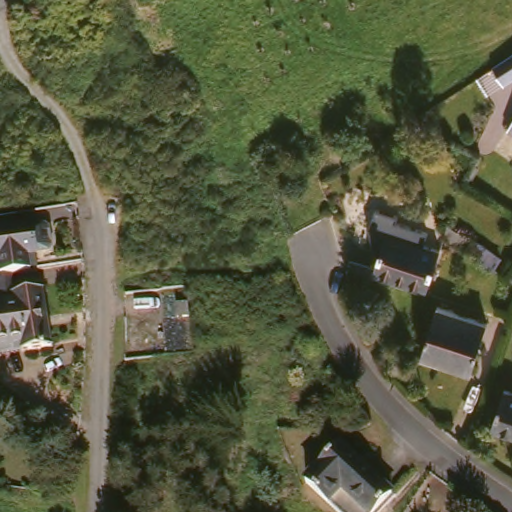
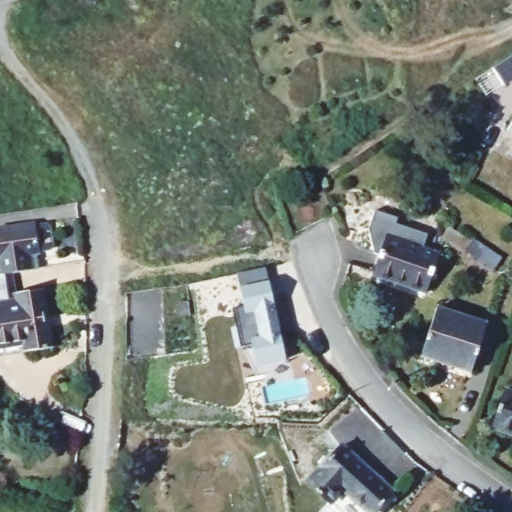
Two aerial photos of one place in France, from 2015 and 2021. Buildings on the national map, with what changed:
new [(512,51),(512,74),(496,85),(485,68),(512,51)]
unchanged [(0,226),(38,221),(39,223),(45,222),(45,220),(51,219),(57,226),(59,239),(54,245),(40,247),(43,266),(31,268),(19,270),(3,272),(0,251),(0,226)]
unchanged [(481,240),(475,250),(449,235),(455,225),(481,240)]
unchanged [(445,251),(432,291),(378,273),(390,233),(445,251)]
new [(245,307),(238,275),(267,268),(289,359),(280,361),(283,372),(262,376),(255,346),(243,348),(234,310),(245,307)]
unchanged [(0,273),(3,272),(19,270),(22,289),(51,286),(60,346),(31,351),(1,355),(0,346),(0,273)]
unchanged [(178,292),(180,307),(170,308),(168,294),(178,292)]
unchanged [(432,333),(443,300),(484,313),(491,316),(495,317),(477,373),(459,367),(461,360),(426,349),(432,333)]
unchanged [(512,384),(512,429),(491,418),(509,382),(512,384)]
unchanged [(396,487),(371,512),(352,512),(311,473),(346,438),(396,487)]

